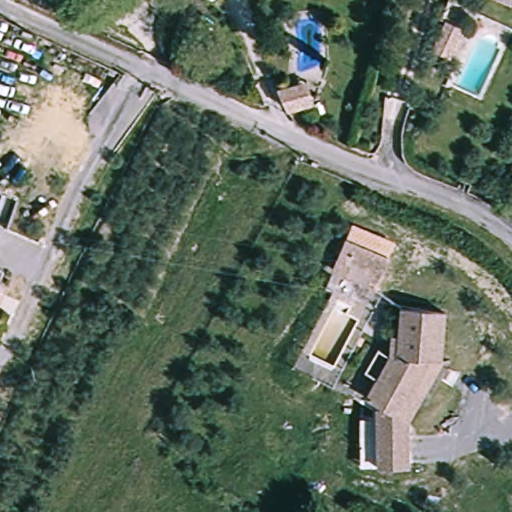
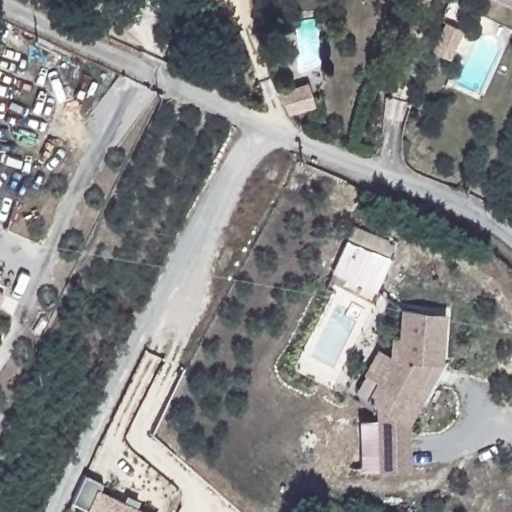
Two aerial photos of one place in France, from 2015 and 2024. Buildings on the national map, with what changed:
unchanged [(485,0),(512,0),(512,8),(485,0)]
unchanged [(439,28),(459,32),(453,62),(431,59),(439,28)]
unchanged [(296,117),(294,94),(324,97),(322,120),(296,117)]
unchanged [(352,225),(395,242),(378,286),(335,269),(352,225)]
unchanged [(440,311),(437,352),(412,422),(415,472),(385,471),(383,411),(371,406),(379,383),(363,377),(373,351),(384,355),(388,336),(396,336),(398,307),(440,311)]
unchanged [(326,365),(320,382),(294,373),(301,355),(326,365)]
new [(127,495),(139,501),(137,506),(149,512),(85,512),(87,508),(73,502),(86,474),(103,482),(100,489),(124,500),(127,495)]

